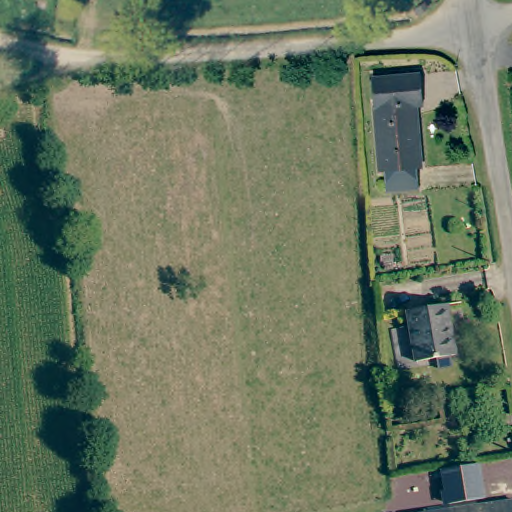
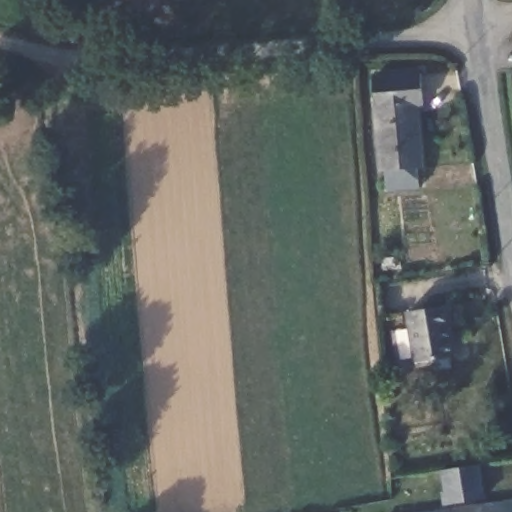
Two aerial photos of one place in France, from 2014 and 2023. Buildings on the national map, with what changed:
unchanged [(420,101),(425,161),(421,161),(421,182),(389,183),(387,163),(383,163),(376,71),(423,69),(426,100),(420,101)]
unchanged [(453,354),(415,362),(407,313),(445,306),(453,354)]
unchanged [(442,504),(437,472),(479,464),(483,497),(442,504)]
unchanged [(475,506),(511,500),(512,503),(512,512),(433,512),(475,506)]

